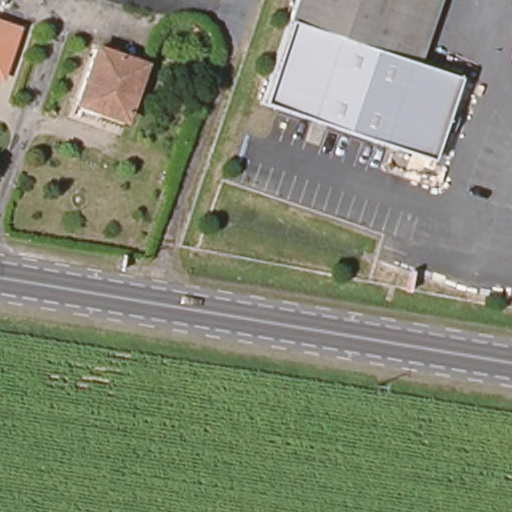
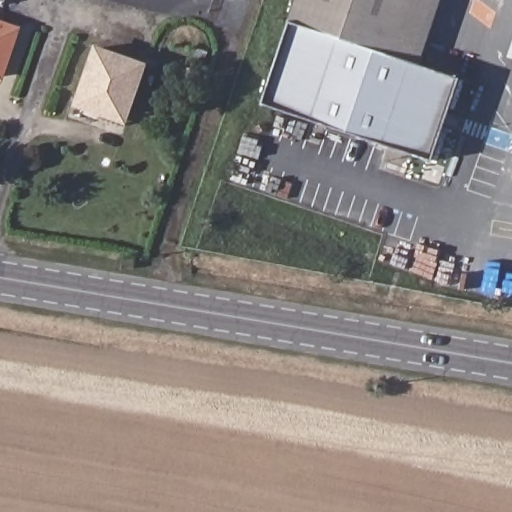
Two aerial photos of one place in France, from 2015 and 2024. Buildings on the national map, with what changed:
unchanged [(0,6),(0,0),(6,0),(4,7),(0,6)]
unchanged [(457,75),(428,159),(260,101),(285,20),(292,0),(439,0),(419,64),(457,75)]
unchanged [(0,76),(0,20),(19,26),(4,77),(0,76)]
unchanged [(504,55),(512,30),(512,57),(504,55)]
unchanged [(128,120),(80,104),(99,47),(147,63),(128,120)]

